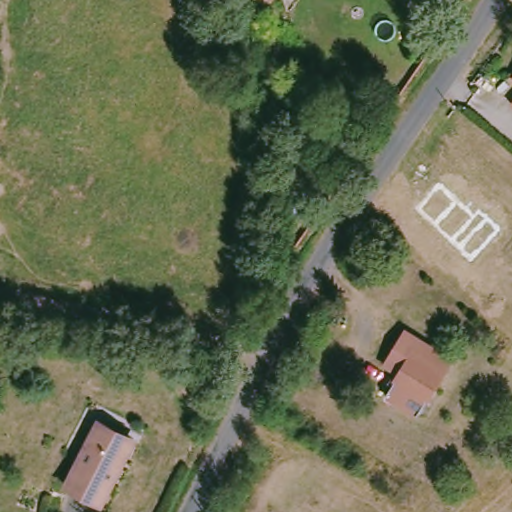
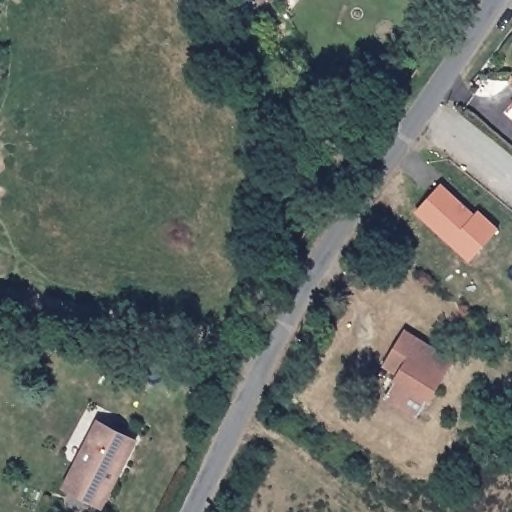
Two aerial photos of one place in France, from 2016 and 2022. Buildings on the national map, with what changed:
new [(460,249),(416,210),(439,185),(473,216),(478,210),(499,228),(477,251),(470,259),(460,249)]
unchanged [(305,203),(300,218),(284,213),(290,198),(305,203)]
unchanged [(423,416),(391,396),(405,374),(390,365),(411,331),(457,360),(423,416)]
unchanged [(139,446),(102,505),(66,487),(104,427),(134,443),(139,446)]

